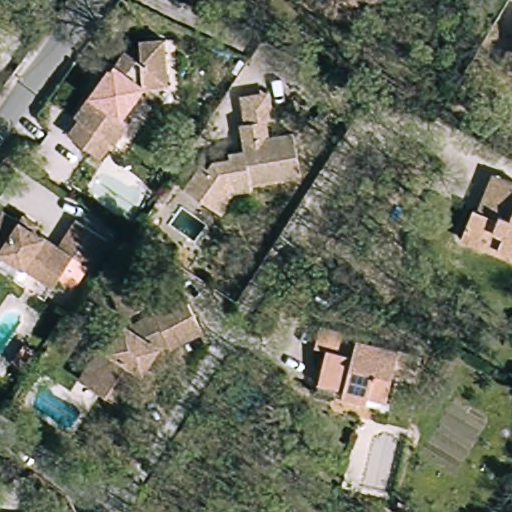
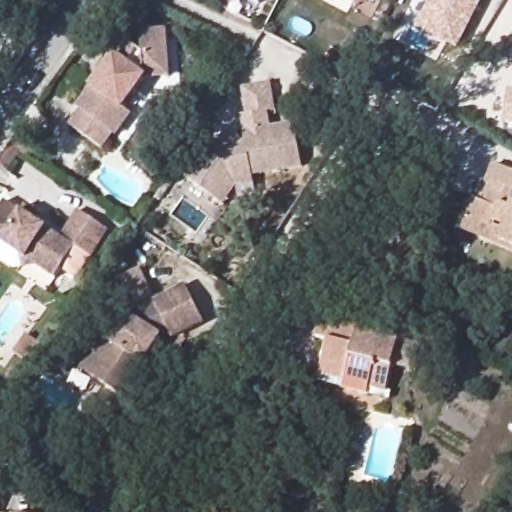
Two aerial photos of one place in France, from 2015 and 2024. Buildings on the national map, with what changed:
new [(260,7),(245,0),(263,0),(260,7)]
unchanged [(347,13),(321,0),(354,0),(347,13)]
new [(457,51),(416,29),(429,3),(424,0),(483,0),(457,51)]
unchanged [(126,37),(143,50),(142,28),(165,27),(169,72),(145,74),(123,104),(132,110),(116,132),(113,129),(102,145),(70,122),(80,106),(77,104),(126,37)]
unchanged [(512,38),(512,57),(505,56),(507,38),(512,38)]
unchanged [(231,146),(230,141),(245,138),(243,129),(245,129),(241,111),(247,110),(243,85),(269,80),(273,106),(265,107),(269,125),(295,120),(302,162),(252,171),(254,179),(235,182),(222,200),(186,175),(203,151),(210,156),(215,149),(231,146)]
new [(512,125),(505,124),(508,91),(512,92),(512,125)]
unchanged [(469,207),(474,195),(479,197),(494,160),(512,167),(512,245),(461,226),(469,207)]
unchanged [(0,249),(0,210),(7,199),(63,235),(80,208),(110,227),(81,270),(75,271),(65,264),(58,275),(28,256),(23,264),(0,249)]
unchanged [(138,270),(151,295),(126,308),(113,283),(138,270)]
unchanged [(283,293),(297,270),(316,282),(302,305),(283,293)]
unchanged [(111,326),(117,330),(126,317),(128,318),(155,305),(154,303),(185,287),(203,323),(171,338),(168,332),(158,337),(160,338),(144,363),(141,362),(120,395),(95,379),(82,371),(111,326)]
unchanged [(363,328),(363,331),(426,347),(420,370),(398,365),(391,392),(396,393),(395,401),(322,382),(333,340),(321,337),(326,319),(363,328)]
unchanged [(15,353),(26,336),(40,345),(27,362),(15,353)]
unchanged [(1,489),(0,500),(0,488),(1,489)]

